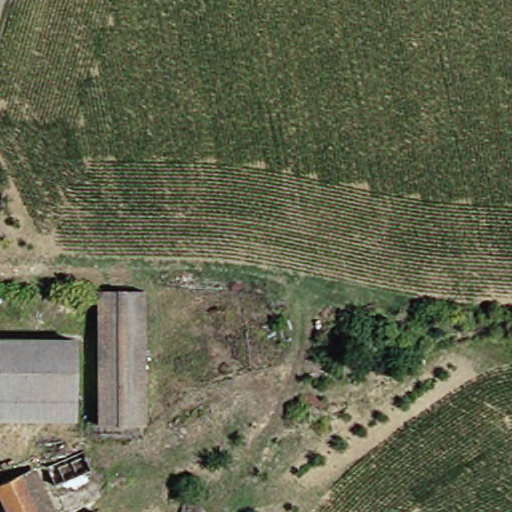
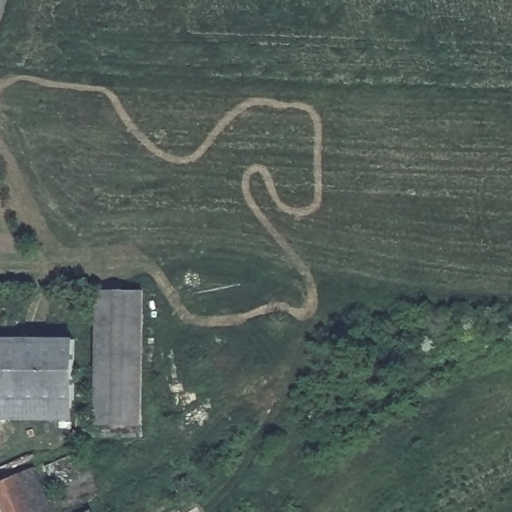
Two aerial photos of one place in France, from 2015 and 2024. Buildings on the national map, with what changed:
unchanged [(147,424),(102,424),(102,290),(147,290),(147,424)]
unchanged [(0,405),(0,345),(69,345),(69,405),(0,405)]
unchanged [(89,469),(62,481),(54,462),(81,450),(89,469)]
unchanged [(9,512),(0,493),(0,484),(31,470),(50,512),(9,512)]

